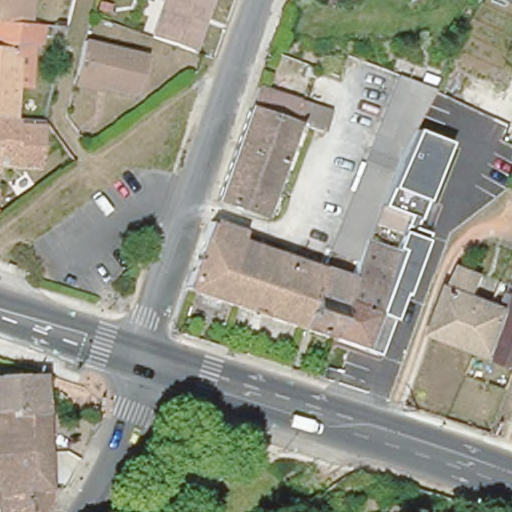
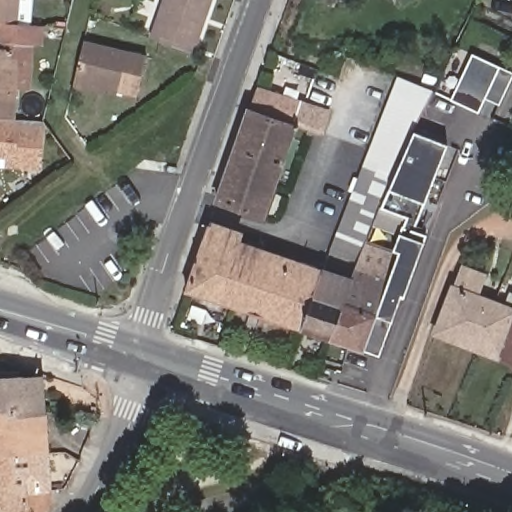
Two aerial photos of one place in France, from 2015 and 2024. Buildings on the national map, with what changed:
unchanged [(0,0),(16,0),(13,43),(30,44),(39,45),(36,63),(28,62),(0,61),(0,0)]
unchanged [(191,52),(153,39),(169,0),(214,0),(194,53),(191,52)]
unchanged [(84,42),(145,58),(134,99),(103,93),(74,86),(76,75),(84,42)]
new [(470,54),(510,74),(486,119),(447,98),(470,54)]
unchanged [(5,127),(0,127),(0,66),(9,66),(5,127)]
unchanged [(365,154),(394,78),(430,89),(415,119),(407,135),(406,136),(400,151),(395,164),(365,154)]
unchanged [(315,102),(310,114),(296,110),(291,124),(244,110),(247,103),(250,102),(257,83),(315,102)]
unchanged [(291,124),(296,110),(310,114),(315,102),(326,106),(321,128),(311,125),(298,120),(262,214),(215,198),(213,196),(244,110),(291,124)]
unchanged [(0,169),(0,127),(5,127),(20,128),(40,129),(36,172),(0,169)]
unchanged [(350,278),(358,259),(328,249),(338,224),(365,154),(395,164),(400,151),(406,136),(407,135),(446,149),(417,233),(427,237),(386,343),(380,360),(360,353),(325,340),(350,278)]
unchanged [(236,240),(299,261),(307,264),(315,267),(293,329),(183,291),(207,223),(239,233),(236,240)]
unchanged [(315,267),(350,278),(325,340),(293,329),(315,267)]
unchanged [(431,331),(451,279),(455,277),(460,267),(479,275),(471,295),(499,305),(505,289),(512,292),(512,364),(431,331)]
unchanged [(46,411),(0,415),(0,381),(44,378),(46,411)]
unchanged [(49,453),(16,455),(0,456),(0,415),(46,411),(49,453)]
unchanged [(72,459),(74,454),(75,449),(85,451),(84,456),(81,462),(72,459)]
unchanged [(51,484),(45,486),(19,489),(16,455),(49,453),(51,484)]
unchanged [(19,489),(45,486),(27,493),(29,504),(58,501),(51,512),(2,512),(0,496),(0,456),(16,455),(19,489)]

